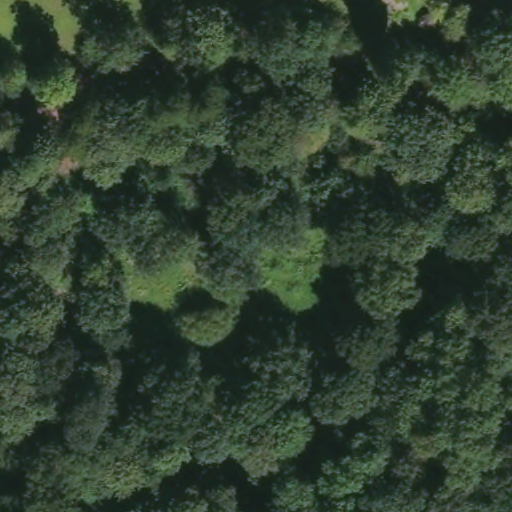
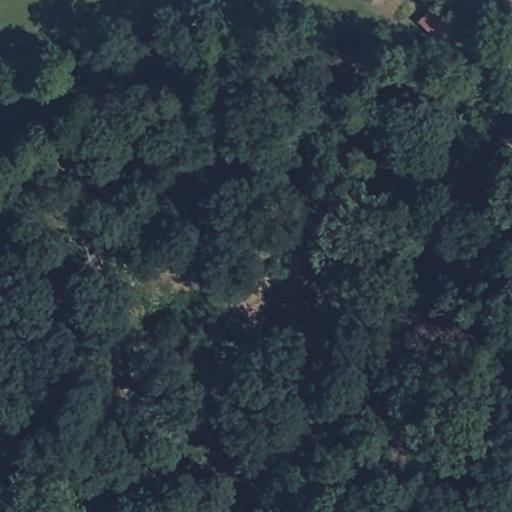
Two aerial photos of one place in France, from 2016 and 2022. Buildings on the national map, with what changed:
unchanged [(418,0),(425,7),(413,18),(397,1),(399,0),(418,0)]

